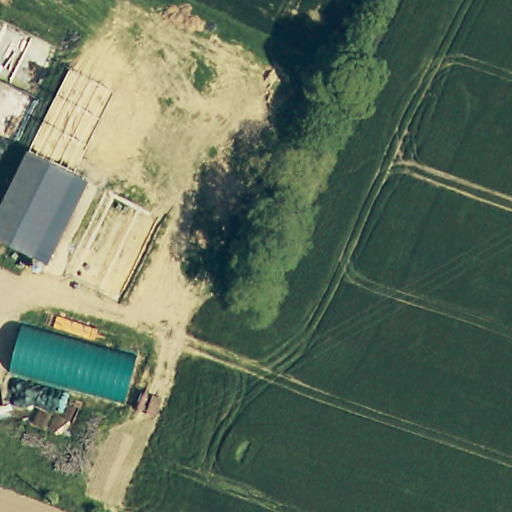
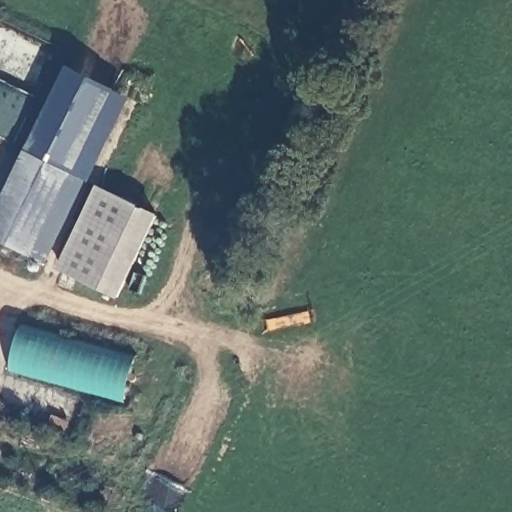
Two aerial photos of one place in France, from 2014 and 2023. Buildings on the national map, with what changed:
new [(0,240),(0,205),(27,149),(69,65),(132,97),(90,181),(47,266),(0,240)]
demolished [(80,170),(40,255),(0,235),(0,225),(36,149),(80,170)]
new [(59,269),(99,185),(159,215),(119,298),(59,269)]
unchanged [(136,358),(125,400),(9,367),(20,327),(136,358)]

